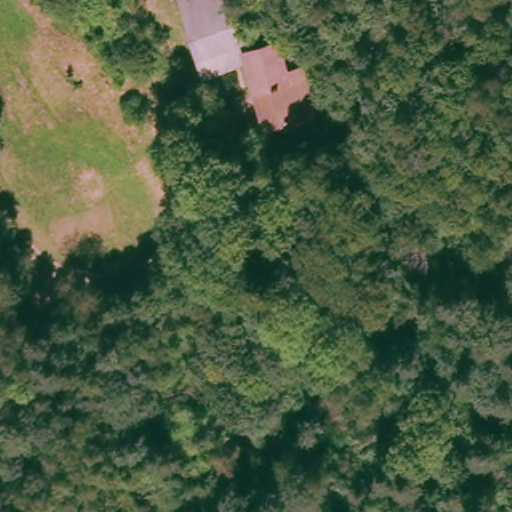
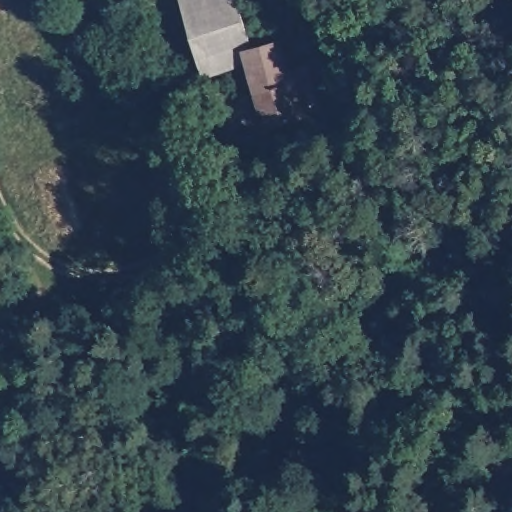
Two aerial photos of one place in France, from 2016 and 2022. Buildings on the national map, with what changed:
unchanged [(256,52),(281,45),(291,75),(294,85),(259,98),(250,66),(210,79),(180,0),(237,0),(256,52)]
unchanged [(286,135),(285,127),(271,131),(259,98),(294,85),(291,75),(309,70),(324,114),(301,121),(303,133),(286,135)]

